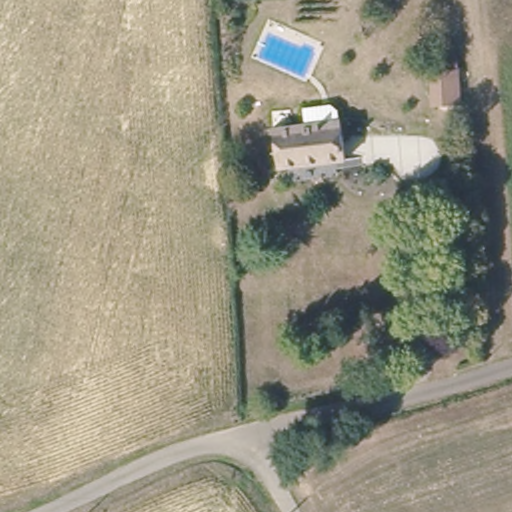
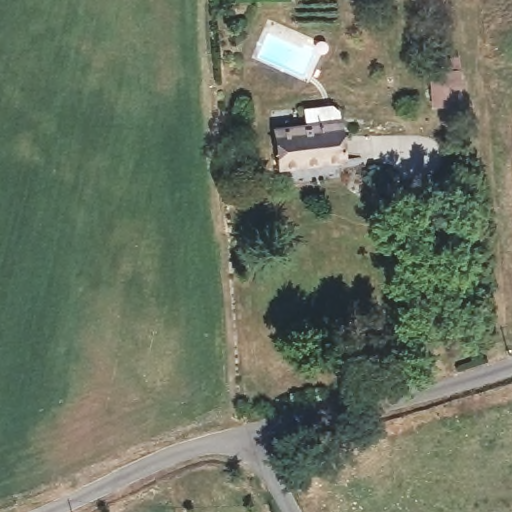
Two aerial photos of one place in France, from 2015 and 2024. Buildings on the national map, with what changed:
unchanged [(432,72),(451,70),(460,69),(462,101),(454,103),(437,103),(432,72)]
unchanged [(272,133),(306,129),(303,113),(339,109),(342,124),(347,168),(277,177),(272,133)]

